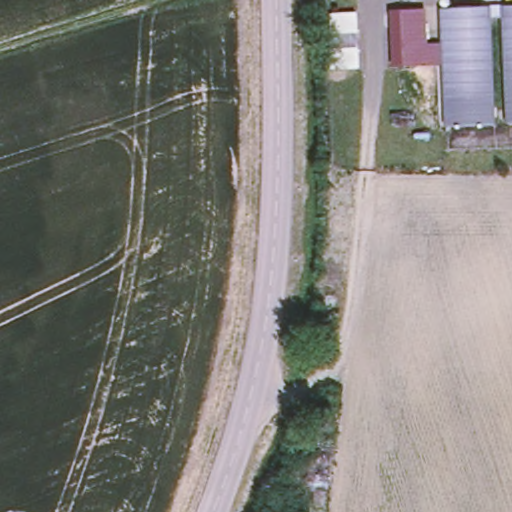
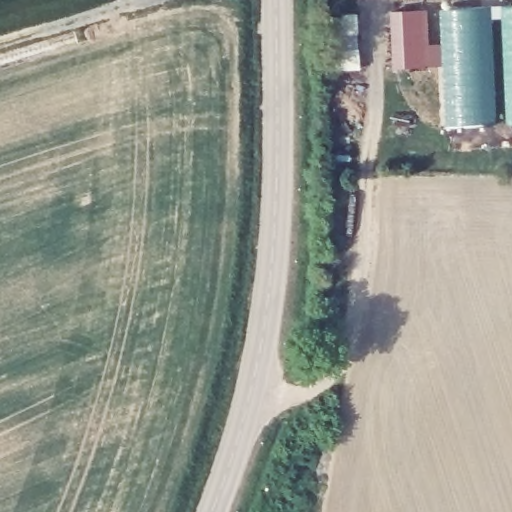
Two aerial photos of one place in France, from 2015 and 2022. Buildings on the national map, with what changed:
unchanged [(512,5),(512,127),(509,127),(504,19),(494,20),(498,127),(448,130),(444,66),(444,44),(442,10),(512,5)]
unchanged [(393,12),(429,10),(432,45),(444,44),(444,66),(407,70),(396,69),(393,12)]
unchanged [(329,15),(361,14),(363,70),(331,70),(329,15)]

